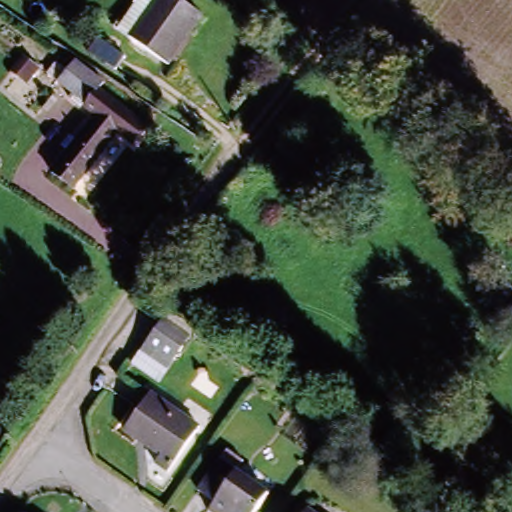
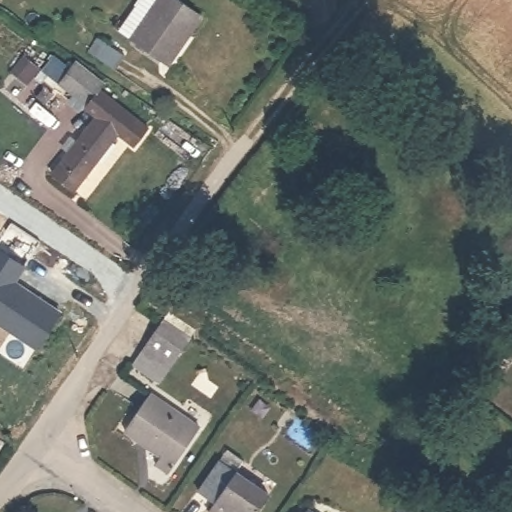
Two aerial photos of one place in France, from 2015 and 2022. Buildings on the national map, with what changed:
unchanged [(177,37),(185,42),(166,68),(125,39),(145,10),(135,2),(137,0),(181,0),(195,11),(177,37)]
unchanged [(116,51),(105,67),(78,49),(89,33),(116,51)]
unchanged [(55,92),(72,67),(98,83),(93,90),(145,125),(132,144),(117,132),(91,116),(55,92)]
unchanged [(52,173),(91,116),(117,132),(76,191),(52,173)]
new [(26,267),(17,282),(63,313),(38,350),(0,325),(0,250),(26,267)]
unchanged [(488,277),(512,289),(512,317),(478,299),(488,277)]
unchanged [(185,345),(165,376),(135,357),(157,326),(185,345)]
unchanged [(160,462),(165,456),(139,437),(134,444),(109,426),(137,389),(197,432),(170,469),(160,462)]
unchanged [(233,472),(268,497),(257,512),(206,512),(205,512),(233,472)]
unchanged [(311,512),(301,512),(305,507),(311,512)]

